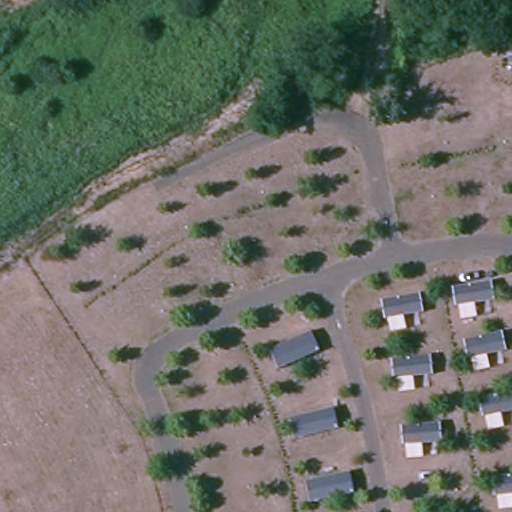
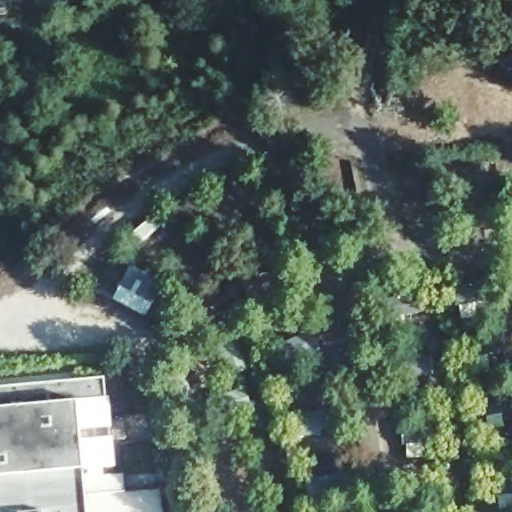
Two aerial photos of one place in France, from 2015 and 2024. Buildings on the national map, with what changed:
new [(113,467),(84,471),(87,512),(0,512),(0,389),(105,378),(113,467)]

